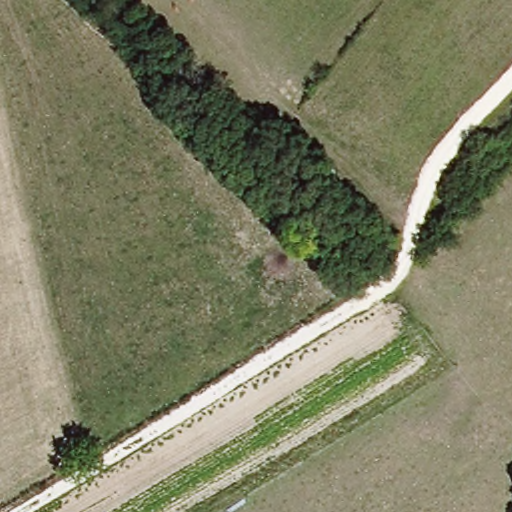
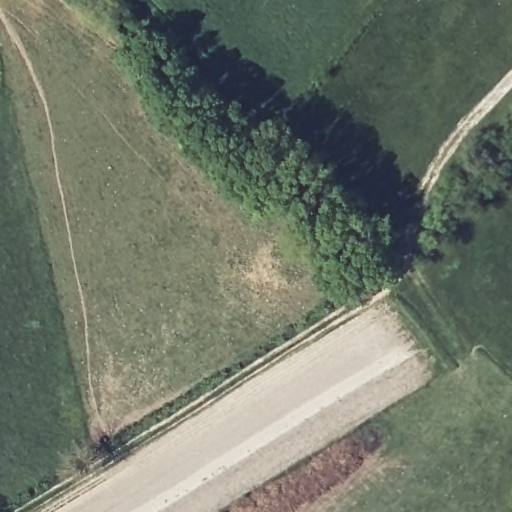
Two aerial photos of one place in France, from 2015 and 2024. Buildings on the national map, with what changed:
[]

